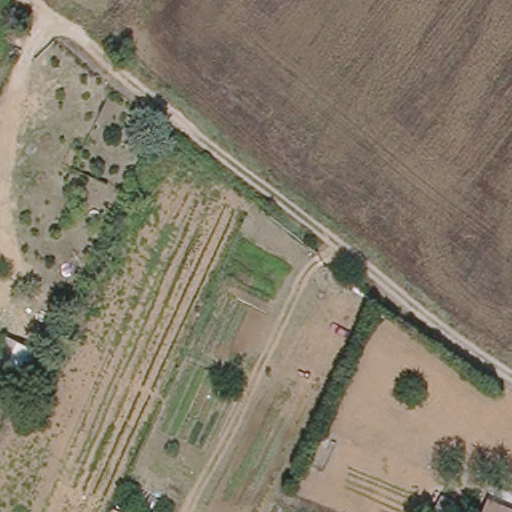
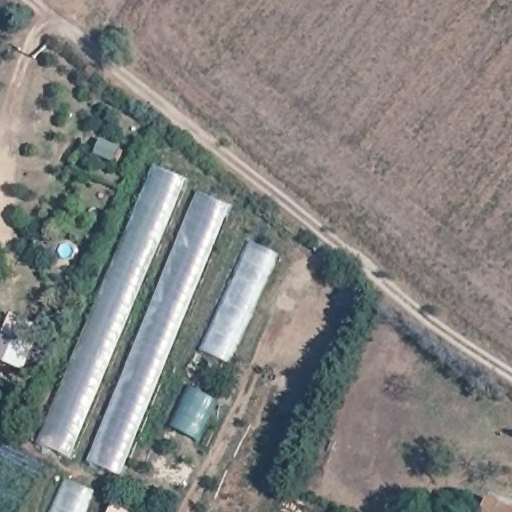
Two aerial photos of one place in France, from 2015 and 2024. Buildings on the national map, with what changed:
new [(188,181),(73,459),(39,444),(156,168),(188,181)]
new [(232,208),(122,475),(87,462),(197,192),(232,208)]
new [(282,256),(232,366),(202,353),(252,243),(282,256)]
unchanged [(27,375),(0,362),(0,337),(3,329),(40,348),(27,375)]
new [(220,404),(198,442),(170,427),(190,387),(220,404)]
new [(97,494),(88,512),(54,512),(67,483),(97,494)]
unchanged [(141,503),(137,512),(104,512),(112,492),(141,503)]
unchanged [(490,494),(512,504),(512,512),(482,512),(490,494)]
unchanged [(441,498),(460,508),(459,512),(432,512),(441,498)]

